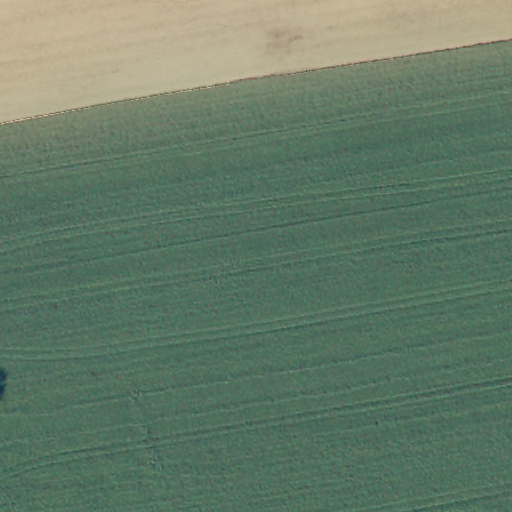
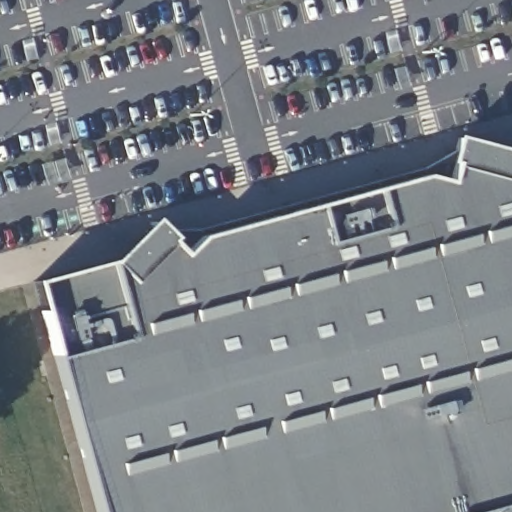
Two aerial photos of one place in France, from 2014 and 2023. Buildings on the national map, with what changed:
new [(111,263),(153,219),(172,237),(168,241),(182,256),(201,237),(424,176),(448,183),(454,163),(448,162),(456,137),(512,151),(512,512),(98,512),(36,282),(111,263)]

